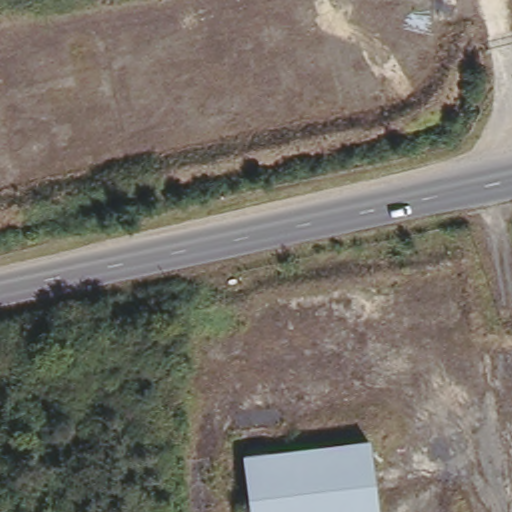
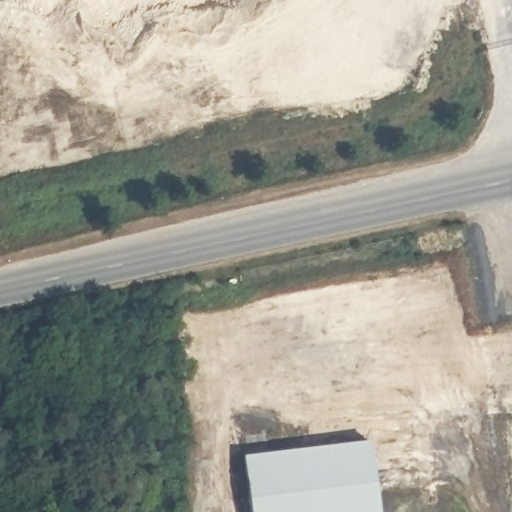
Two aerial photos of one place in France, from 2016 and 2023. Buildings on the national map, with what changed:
unchanged [(371,435),(377,512),(251,512),(245,450),(371,435)]

